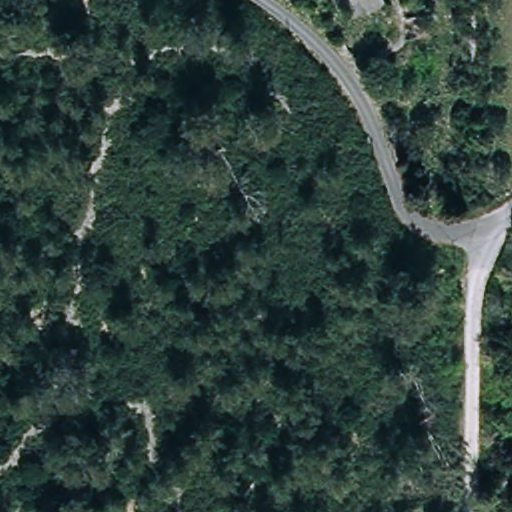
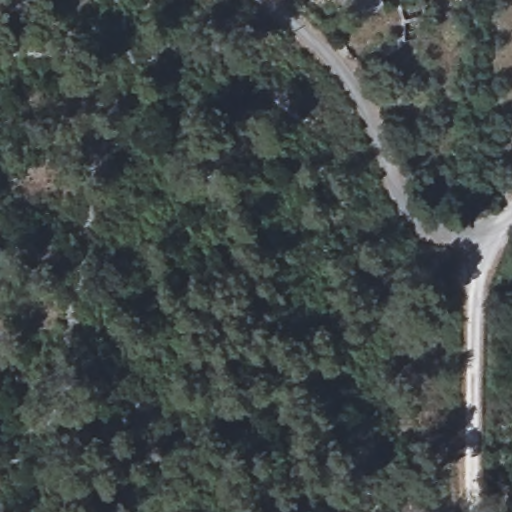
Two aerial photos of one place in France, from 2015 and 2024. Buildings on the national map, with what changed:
unchanged [(384,5),(348,22),(336,0),(381,0),(384,5)]
unchanged [(395,0),(423,0),(428,32),(398,37),(395,0)]

